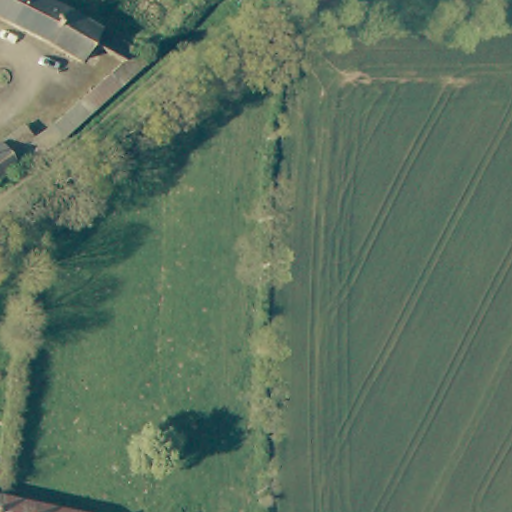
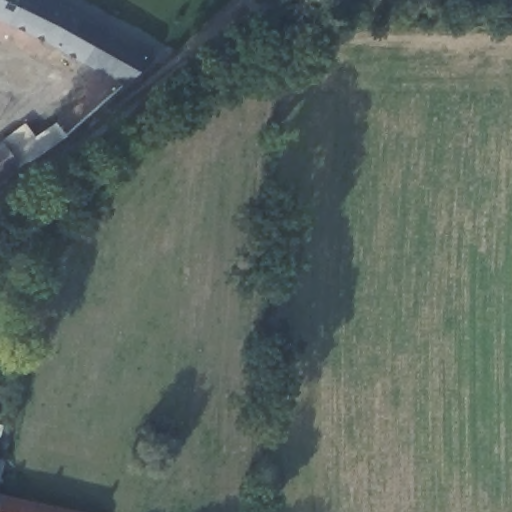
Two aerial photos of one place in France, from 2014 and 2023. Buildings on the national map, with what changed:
unchanged [(0,182),(0,146),(28,121),(39,129),(67,105),(96,78),(123,49),(83,32),(77,48),(0,16),(0,0),(62,0),(146,41),(154,45),(33,163),(28,157),(0,182)]
unchanged [(101,508),(100,512),(0,512),(0,489),(101,508)]

